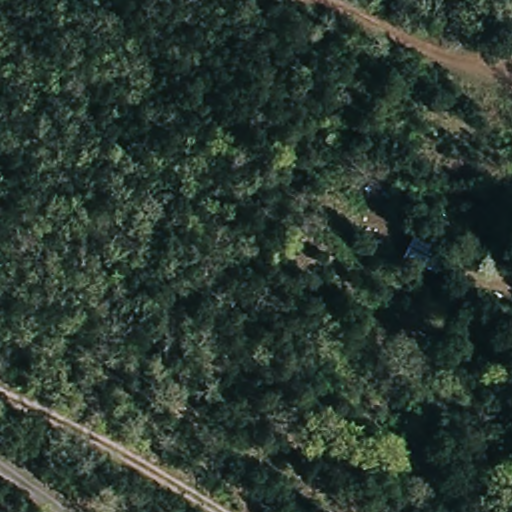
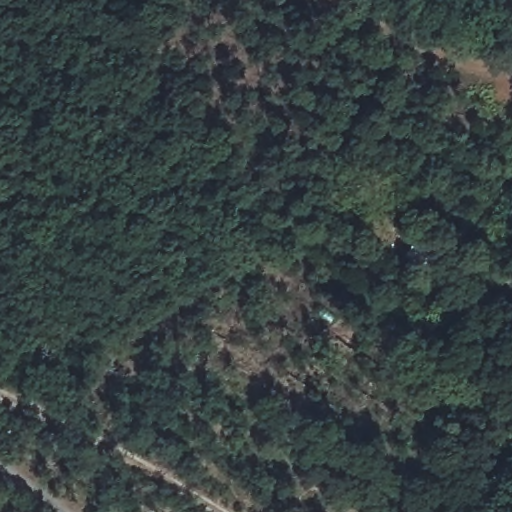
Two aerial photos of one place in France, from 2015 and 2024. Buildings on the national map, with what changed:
unchanged [(512,273),(512,299),(474,292),(402,261),(414,235),(482,266),(512,273)]

